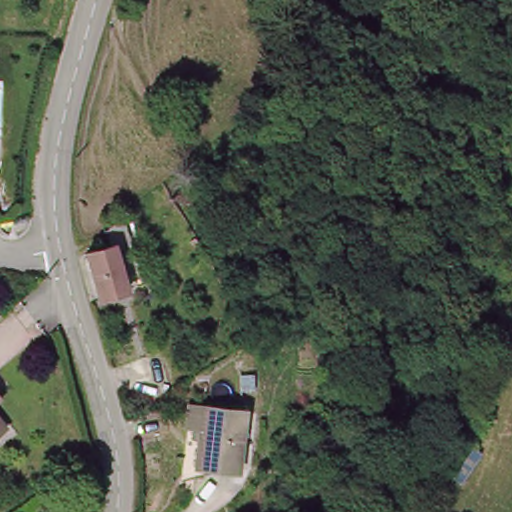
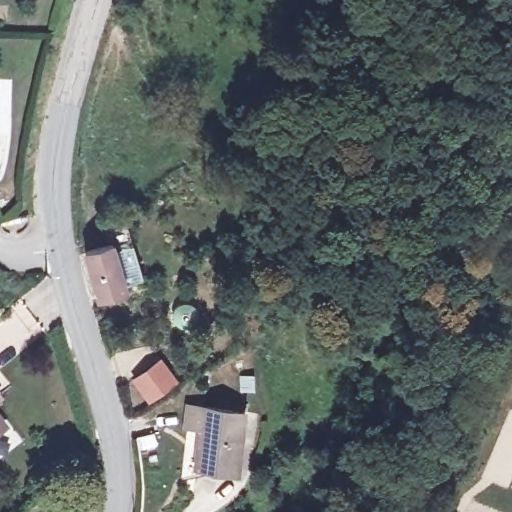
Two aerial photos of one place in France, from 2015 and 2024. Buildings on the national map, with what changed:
unchanged [(135,286),(115,292),(116,296),(91,305),(75,260),(100,250),(95,235),(114,219),(135,286)]
new [(138,382),(162,363),(178,384),(154,403),(138,382)]
unchanged [(223,405),(247,411),(233,467),(192,457),(201,421),(186,417),(191,398),(223,405)]
unchanged [(4,427),(0,431),(0,422),(4,427)]

